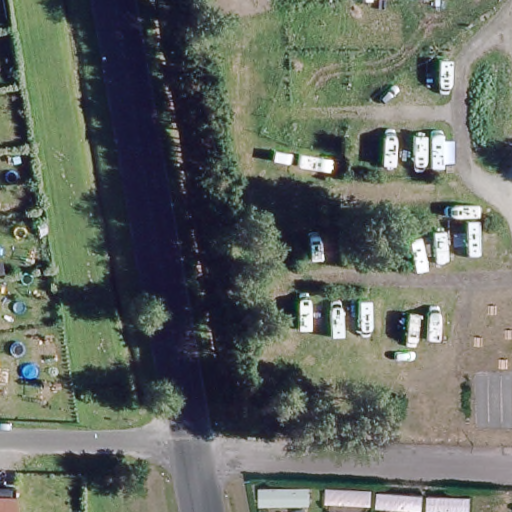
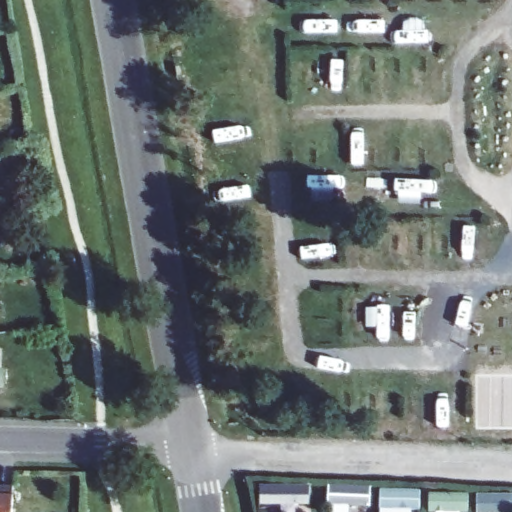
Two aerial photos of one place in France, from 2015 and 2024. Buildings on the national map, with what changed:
unchanged [(14,512),(0,512),(0,495),(15,495),(14,512)]

